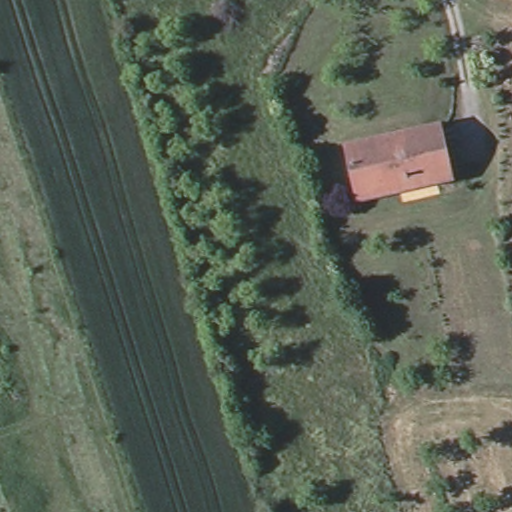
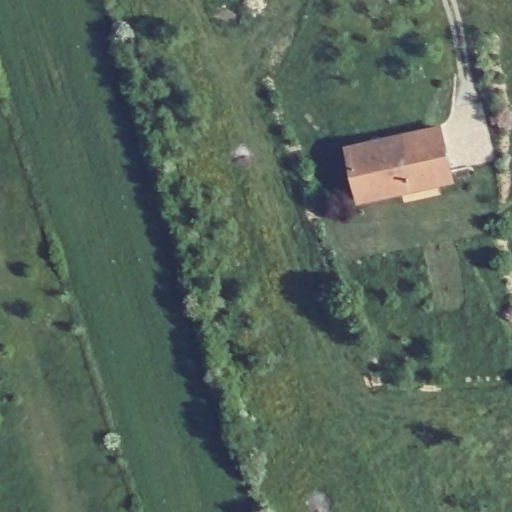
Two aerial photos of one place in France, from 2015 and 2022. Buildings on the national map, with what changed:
unchanged [(445,129),(454,171),(404,182),(406,191),(362,201),(352,149),(445,129)]

